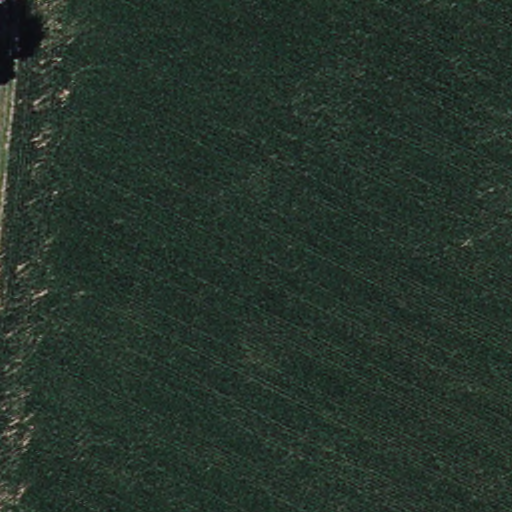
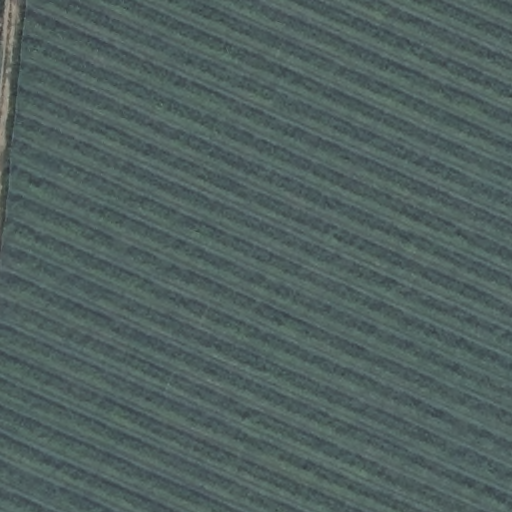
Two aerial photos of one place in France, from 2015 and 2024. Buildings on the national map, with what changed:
[]

